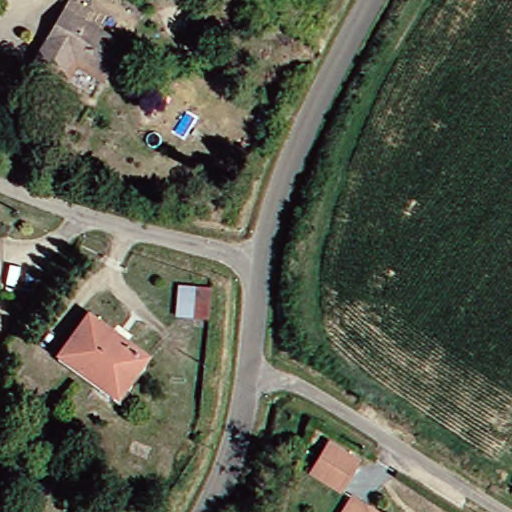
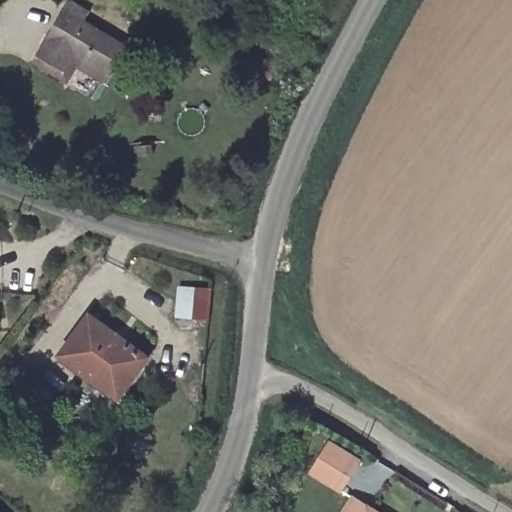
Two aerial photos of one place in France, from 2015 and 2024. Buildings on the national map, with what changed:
unchanged [(28,50),(58,5),(62,0),(69,0),(83,8),(77,18),(116,43),(97,72),(65,52),(55,66),(28,50)]
unchanged [(111,394),(51,353),(80,312),(138,353),(111,394)]
unchanged [(334,488),(305,469),(323,441),(352,460),(334,488)]
unchanged [(374,512),(327,512),(342,491),(374,512)]

